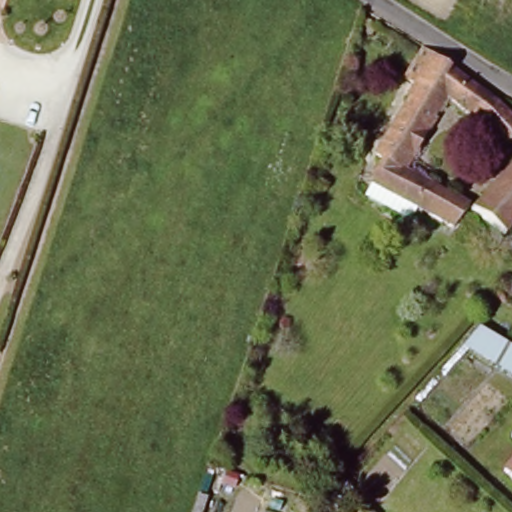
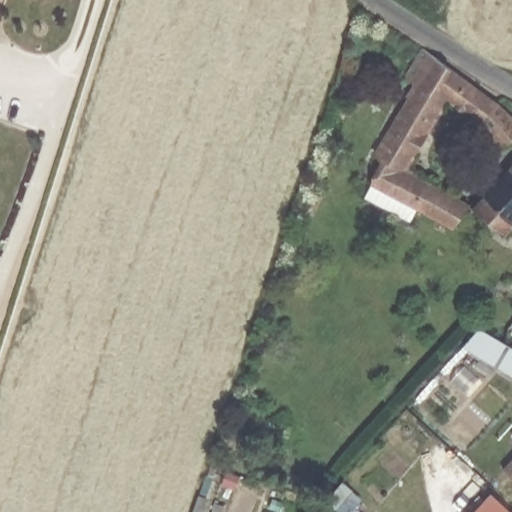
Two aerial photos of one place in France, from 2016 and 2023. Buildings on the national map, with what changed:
unchanged [(502,104),(512,113),(512,142),(501,149),(491,142),(482,124),(449,101),(405,172),(469,207),(458,227),(370,181),(382,159),(375,152),(415,89),(405,82),(425,49),(502,104)]
unchanged [(512,172),(512,228),(497,244),(473,222),(471,220),(512,172)]
unchanged [(481,328),(510,344),(512,345),(512,374),(465,346),(480,328),(481,328)]
unchanged [(507,465),(512,460),(512,470),(507,465)]
new [(512,511),(512,512),(472,512),(491,491),(512,511)]

